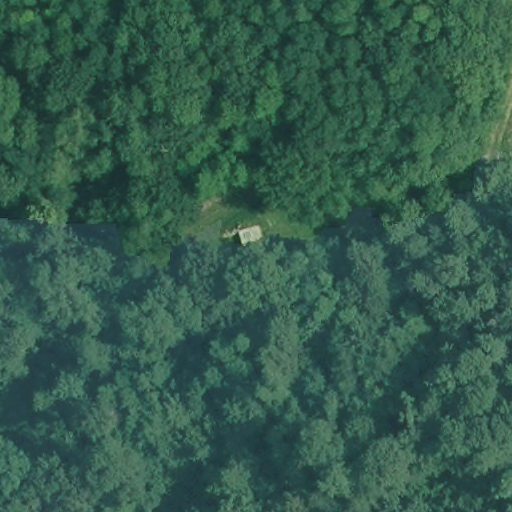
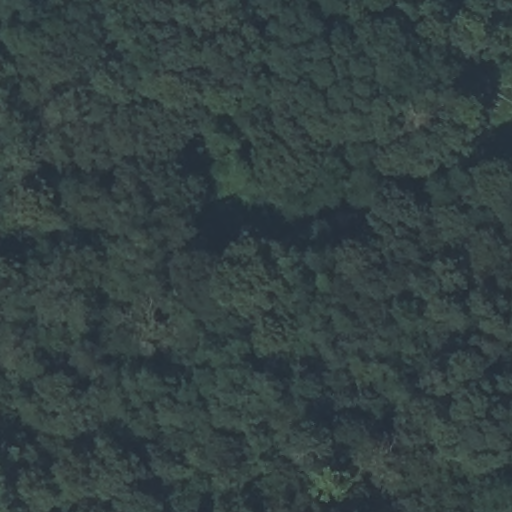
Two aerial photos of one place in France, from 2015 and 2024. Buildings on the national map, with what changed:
unchanged [(428,57),(410,100),(328,69),(337,37),(428,57)]

